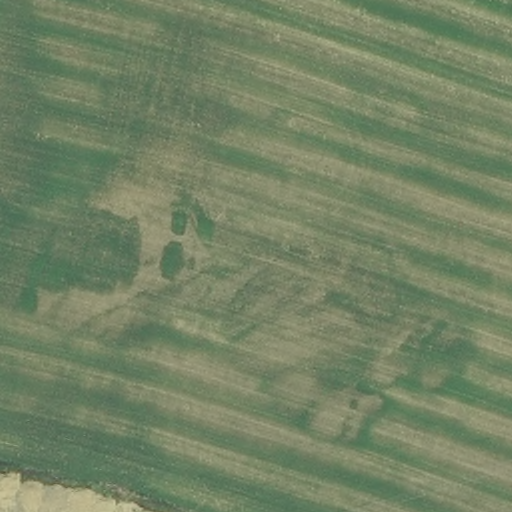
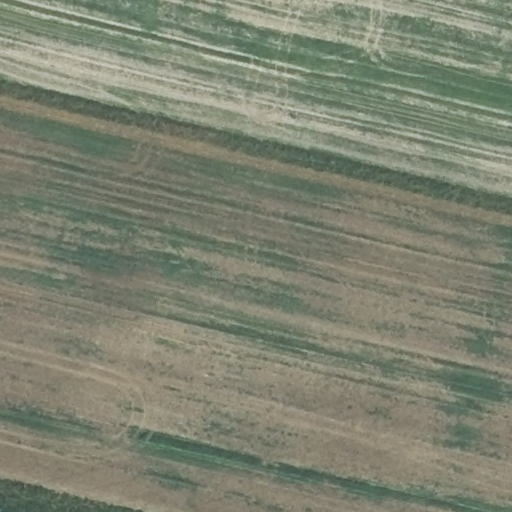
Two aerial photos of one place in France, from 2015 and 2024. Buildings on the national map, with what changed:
[]

